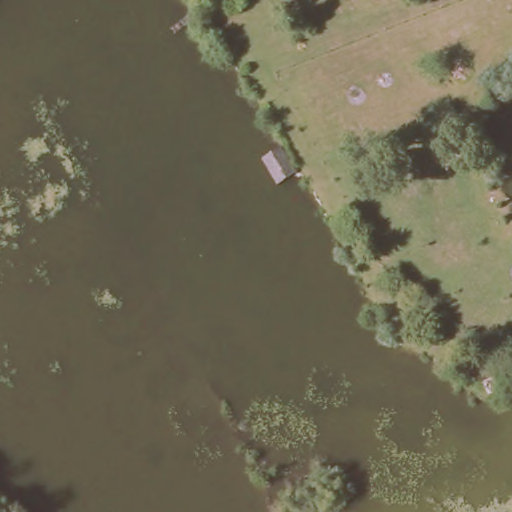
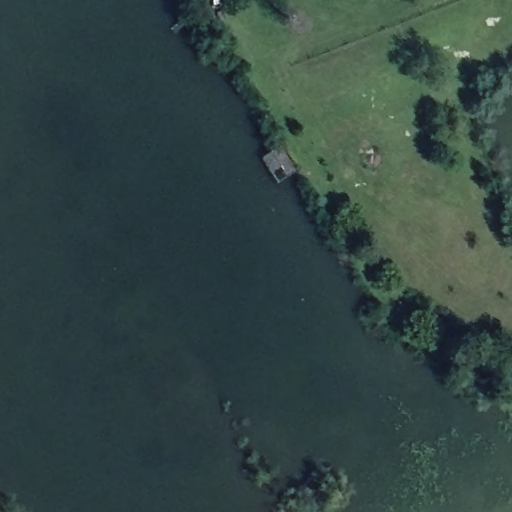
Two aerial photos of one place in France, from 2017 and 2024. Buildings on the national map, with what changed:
unchanged [(277,183),(261,157),(279,146),(294,173),(277,183)]

